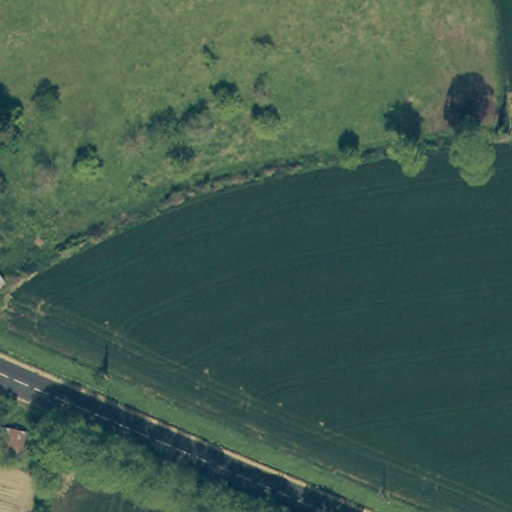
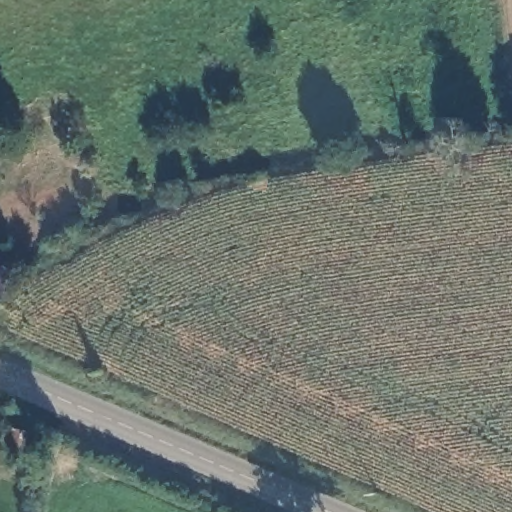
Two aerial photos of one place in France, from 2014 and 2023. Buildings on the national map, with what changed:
unchanged [(4,283),(0,285),(0,277),(4,283)]
unchanged [(30,458),(2,454),(2,447),(3,428),(31,429),(30,458)]

